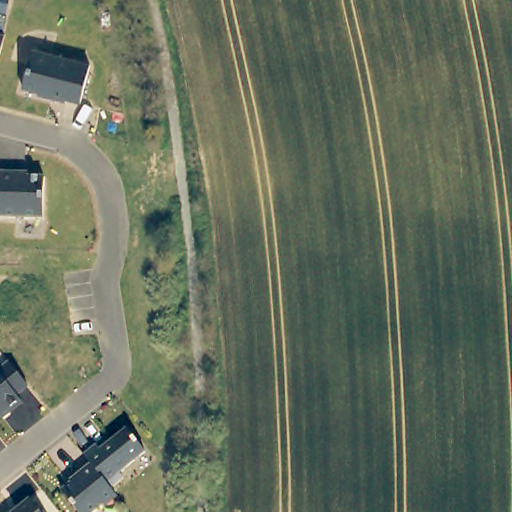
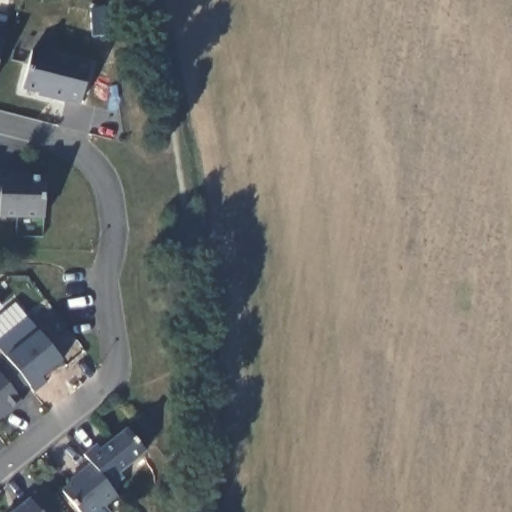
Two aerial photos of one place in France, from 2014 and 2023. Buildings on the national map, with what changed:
unchanged [(0,43),(0,33),(2,33),(0,43)]
unchanged [(88,63),(78,101),(64,98),(63,100),(46,96),(47,93),(20,86),(30,48),(88,63)]
unchanged [(15,174),(42,175),(41,216),(0,215),(0,170),(15,170),(15,174)]
new [(63,360),(32,384),(7,355),(0,348),(0,339),(26,317),(37,329),(63,360)]
unchanged [(26,383),(14,393),(20,400),(7,410),(6,408),(0,413),(0,366),(7,360),(26,383)]
unchanged [(143,449),(117,470),(121,475),(109,486),(107,484),(100,475),(90,462),(82,452),(94,442),(98,447),(125,426),(143,449)]
unchanged [(77,472),(90,462),(100,475),(107,484),(109,486),(115,493),(102,503),(101,501),(88,512),(78,512),(60,489),(79,474),(77,472)]
unchanged [(39,512),(7,512),(27,496),(39,512)]

